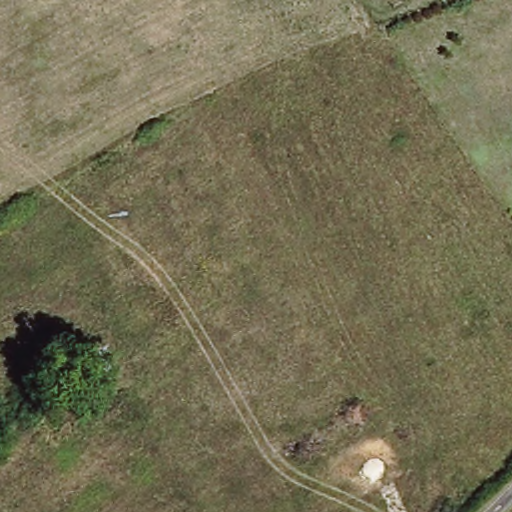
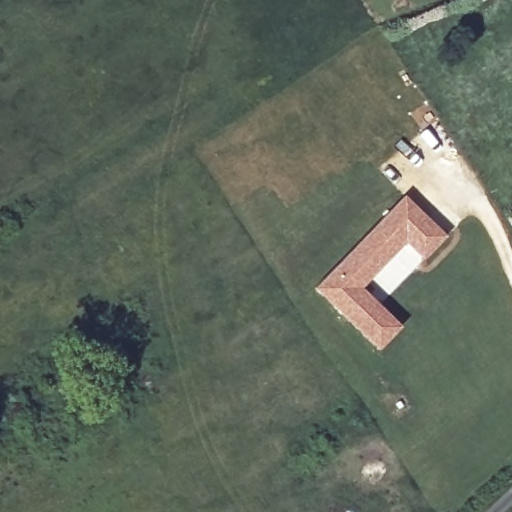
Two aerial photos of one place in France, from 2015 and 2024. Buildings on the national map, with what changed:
new [(407,241),(361,287),(401,326),(378,349),(316,287),(405,195),(447,237),(425,256),(407,241)]

